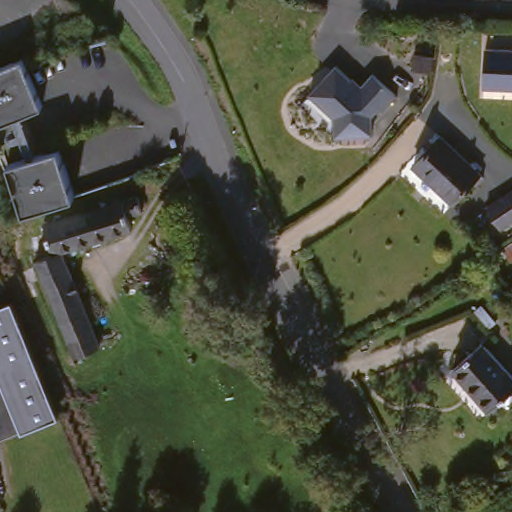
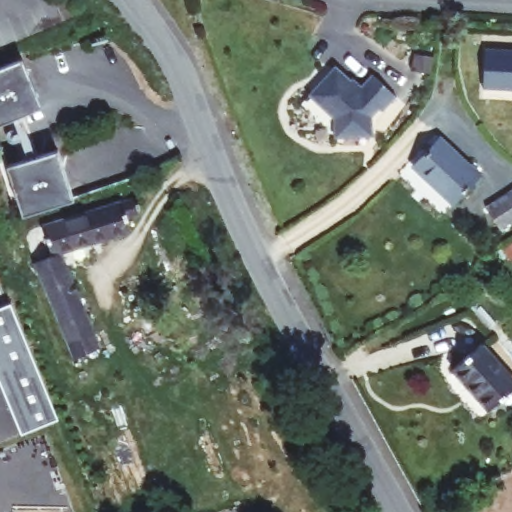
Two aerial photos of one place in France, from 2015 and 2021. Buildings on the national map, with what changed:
unchanged [(485,49),(512,50),(512,89),(485,89),(485,49)]
unchanged [(50,109),(0,130),(0,73),(30,60),(50,109)]
unchanged [(357,88),(371,75),(391,99),(376,111),(373,108),(365,115),(364,135),(327,133),(328,114),(306,88),(335,63),(357,88)]
unchanged [(447,209),(409,166),(441,139),(476,180),(447,209)]
unchanged [(26,215),(11,166),(63,150),(76,190),(79,199),(26,217),(26,215)]
unchanged [(483,207),(512,188),(512,223),(500,231),(483,207)]
unchanged [(71,361),(30,264),(50,256),(41,227),(134,198),(140,214),(127,219),(132,233),(61,255),(100,347),(71,361)]
unchanged [(20,432),(0,384),(0,308),(10,304),(57,417),(20,432)]
unchanged [(457,372),(491,344),(512,369),(512,399),(495,413),(457,372)]

